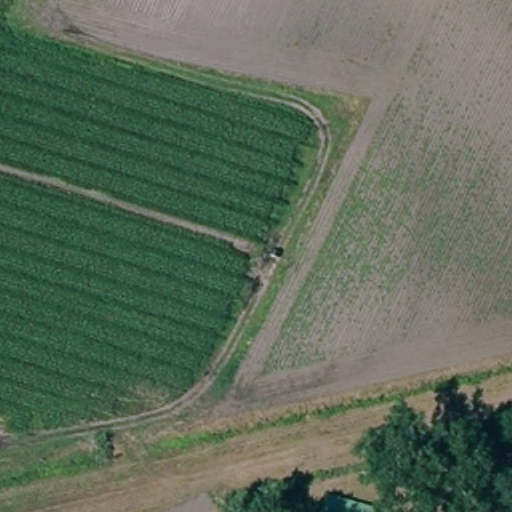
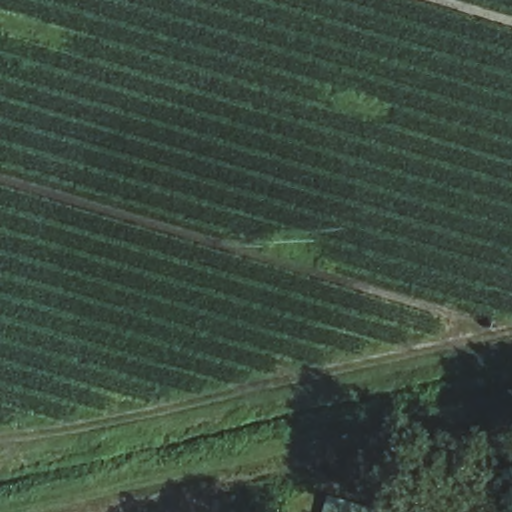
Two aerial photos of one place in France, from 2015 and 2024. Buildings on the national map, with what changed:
unchanged [(314,512),(322,490),(374,509),(373,512),(314,512)]

